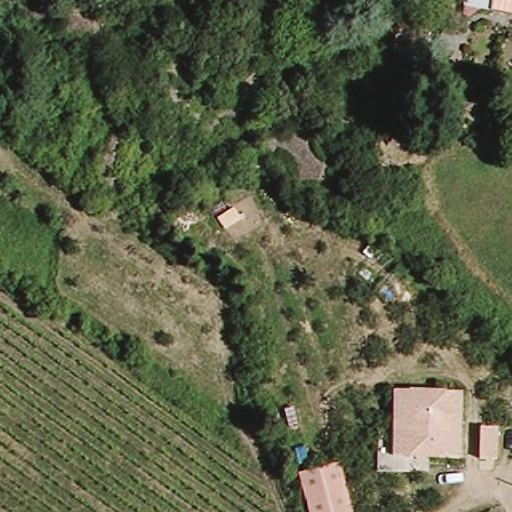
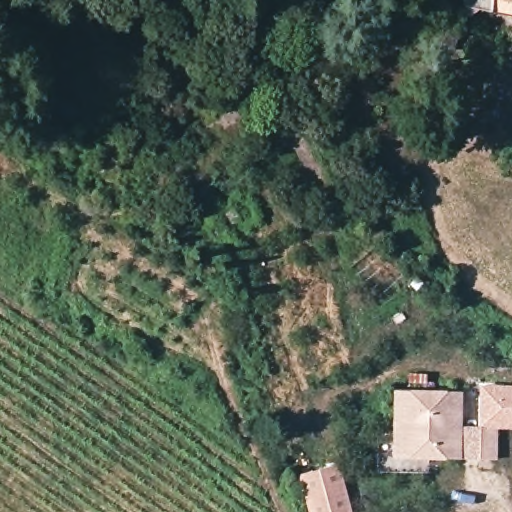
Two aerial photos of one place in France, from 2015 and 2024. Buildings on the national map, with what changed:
unchanged [(447,35),(440,63),(417,55),(425,28),(447,35)]
new [(480,461),(480,428),(480,459),(459,459),(460,427),(479,427),(480,385),(512,386),(512,429),(498,430),(497,462),(480,461)]
unchanged [(460,392),(459,459),(390,456),(392,389),(460,392)]
demolished [(498,430),(497,462),(480,461),(480,428),(498,430)]
unchanged [(334,464),(349,512),(308,512),(297,476),(334,464)]

